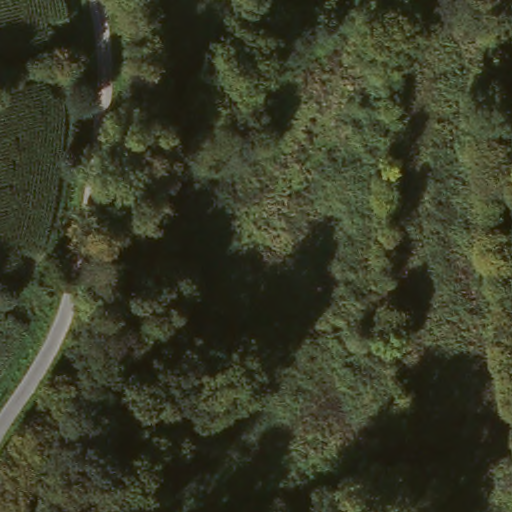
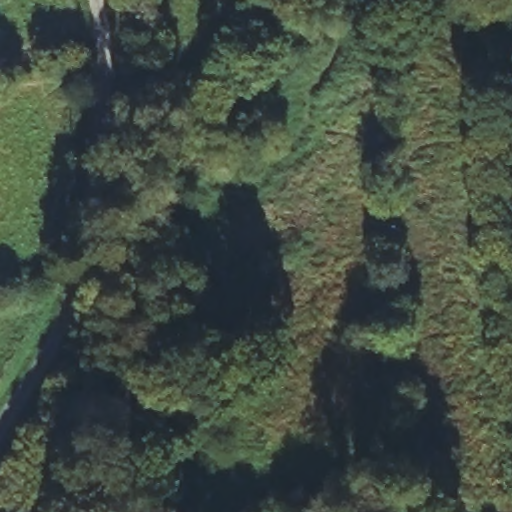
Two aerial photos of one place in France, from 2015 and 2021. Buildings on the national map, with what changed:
[]

